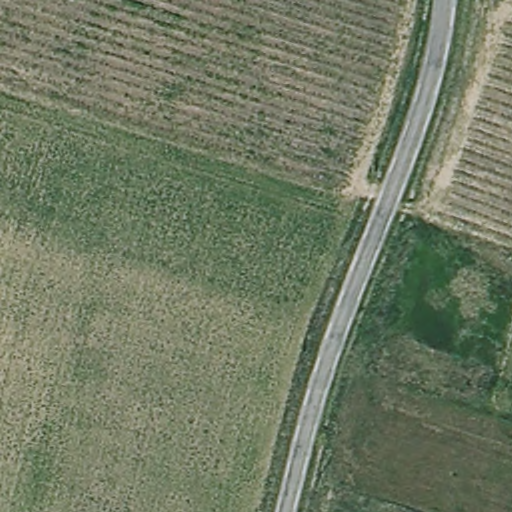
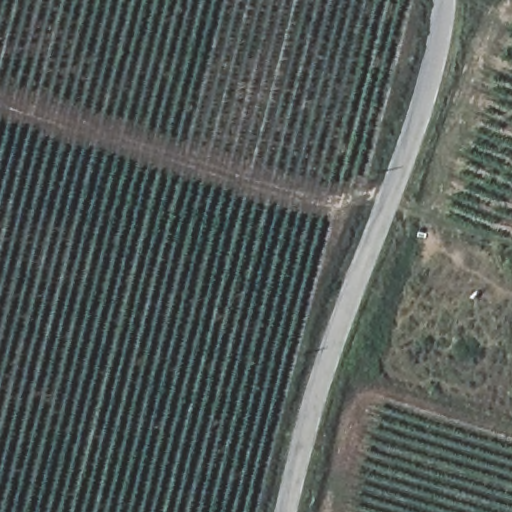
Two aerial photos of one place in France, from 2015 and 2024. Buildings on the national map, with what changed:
[]

